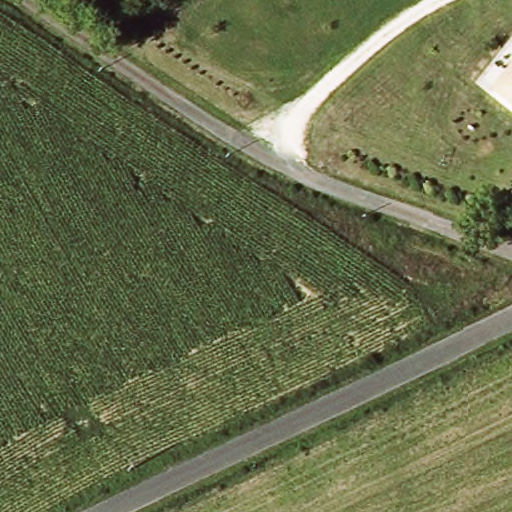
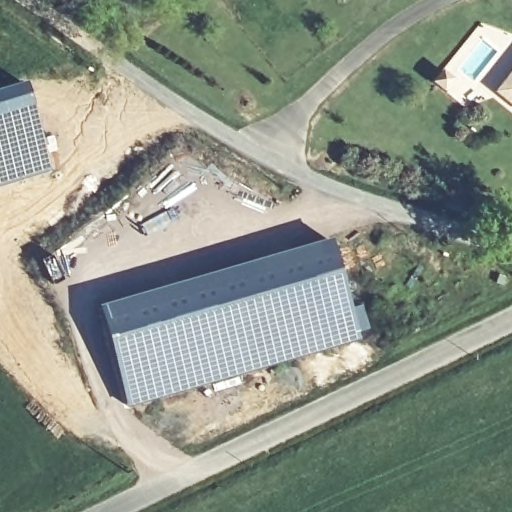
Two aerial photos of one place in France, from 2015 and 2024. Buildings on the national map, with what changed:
unchanged [(498,92),(512,73),(512,102),(498,92)]
new [(48,170),(0,185),(0,90),(24,83),(27,96),(48,170)]
new [(331,239),(360,338),(124,407),(96,307),(331,239)]

